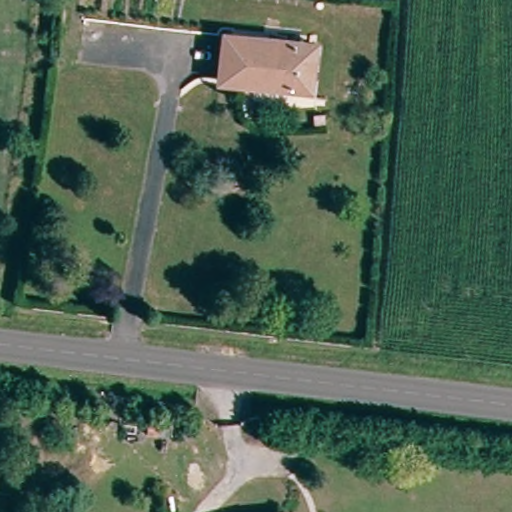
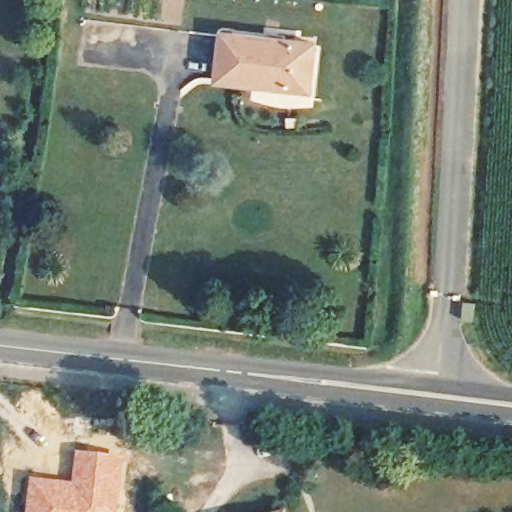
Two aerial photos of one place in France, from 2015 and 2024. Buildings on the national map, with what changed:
unchanged [(310,83),(220,84),(220,41),(310,40),(310,83)]
new [(30,477),(71,481),(76,451),(125,457),(118,512),(26,512),(30,477)]

